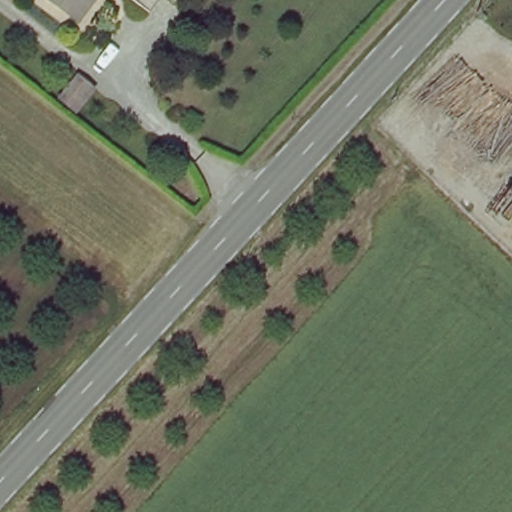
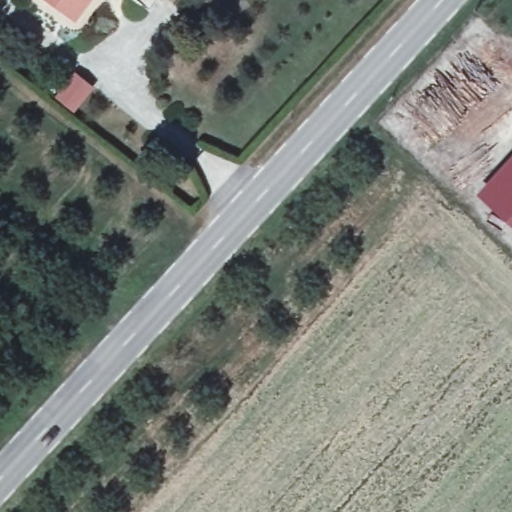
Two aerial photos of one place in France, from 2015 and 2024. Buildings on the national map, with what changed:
unchanged [(77,23),(47,0),(94,0),(77,23)]
new [(512,156),(512,228),(477,195),(512,156)]

